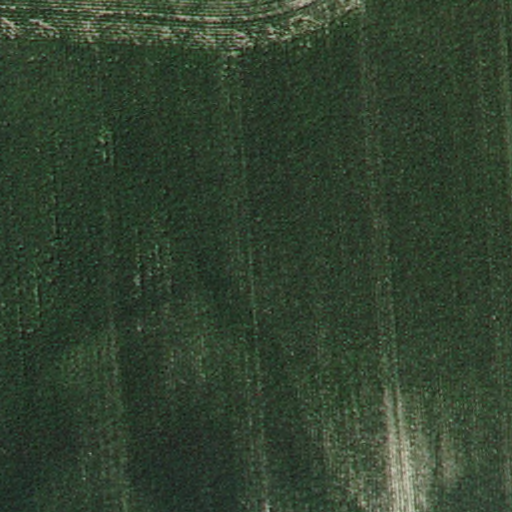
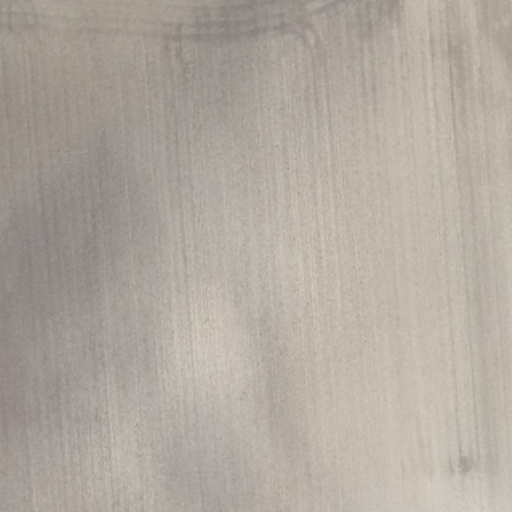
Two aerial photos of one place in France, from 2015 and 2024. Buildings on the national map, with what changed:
[]

